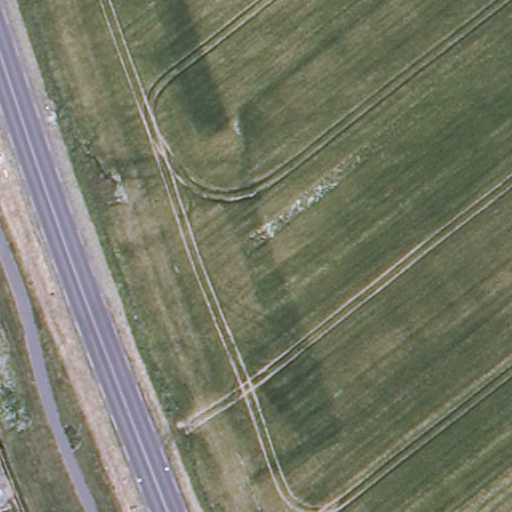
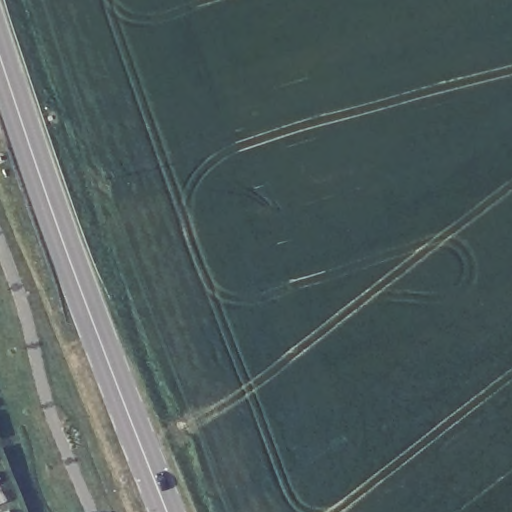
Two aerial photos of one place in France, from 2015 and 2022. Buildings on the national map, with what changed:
unchanged [(0,503),(0,482),(7,500),(0,503)]

